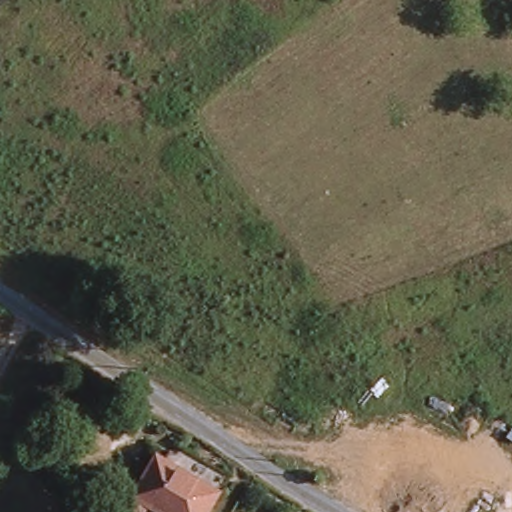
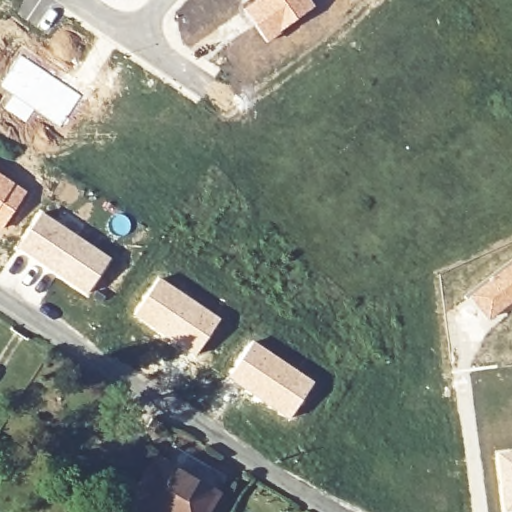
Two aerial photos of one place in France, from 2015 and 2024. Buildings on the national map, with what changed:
new [(268,42),(242,7),(251,0),(312,0),(316,6),(268,42)]
new [(27,82),(29,78),(29,74),(27,69),(30,66),(27,64),(31,59),(84,94),(61,127),(34,110),(27,119),(21,115),(27,106),(17,98),(27,82)]
new [(0,232),(0,174),(27,191),(0,232)]
new [(41,212),(112,258),(87,295),(16,247),(41,212)]
new [(512,260),(512,303),(488,321),(467,294),(512,260)]
new [(159,277),(221,318),(195,358),(132,316),(159,277)]
new [(253,340),(315,382),(288,420),(227,377),(253,340)]
new [(512,449),(512,512),(503,512),(496,451),(512,449)]
unchanged [(162,463),(217,496),(207,512),(159,512),(140,500),(162,463)]

